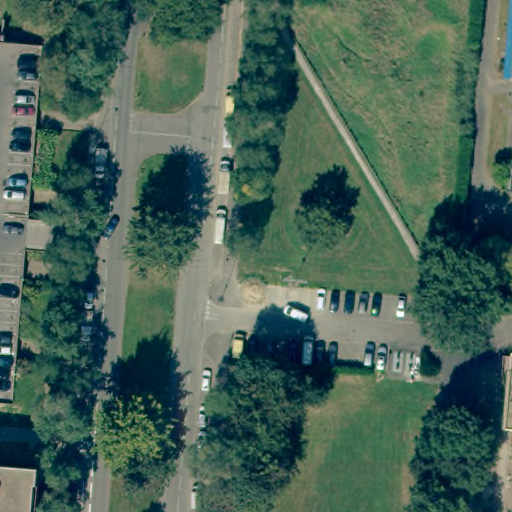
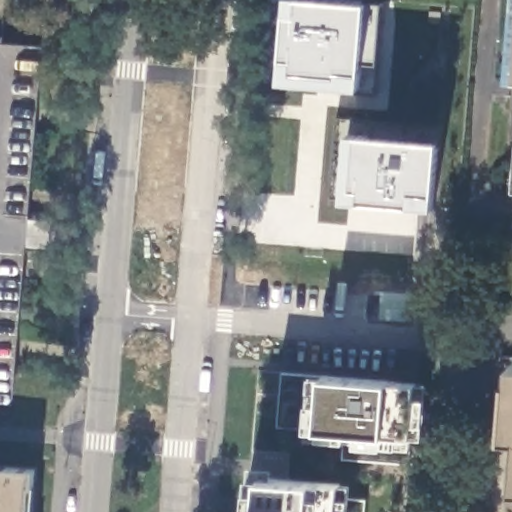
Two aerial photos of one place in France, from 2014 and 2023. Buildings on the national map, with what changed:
new [(289,0),(373,0),(384,1),(377,95),(282,89),(289,0)]
new [(344,206),(334,206),(335,173),(344,174),(349,124),(449,133),(444,208),(439,208),(439,219),(344,210),(344,206)]
unchanged [(507,425),(512,366),(512,425),(507,425)]
new [(283,374),(322,376),(387,382),(416,384),(412,437),(383,434),(318,429),(279,426),(283,374)]
unchanged [(28,482),(25,482),(23,512),(0,512),(0,464),(29,466),(28,482)]
new [(364,512),(247,512),(250,476),(260,477),(351,484),(349,499),(366,500),(364,512)]

